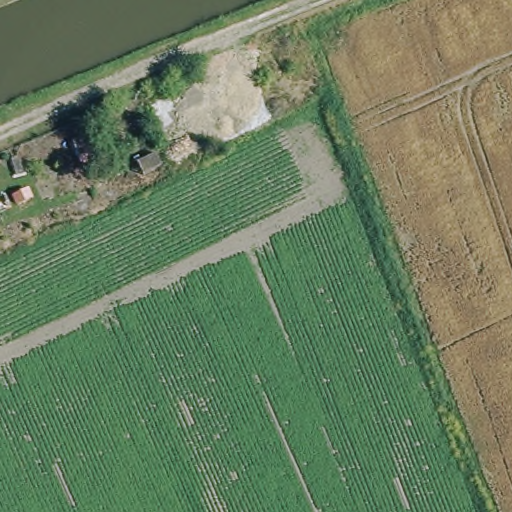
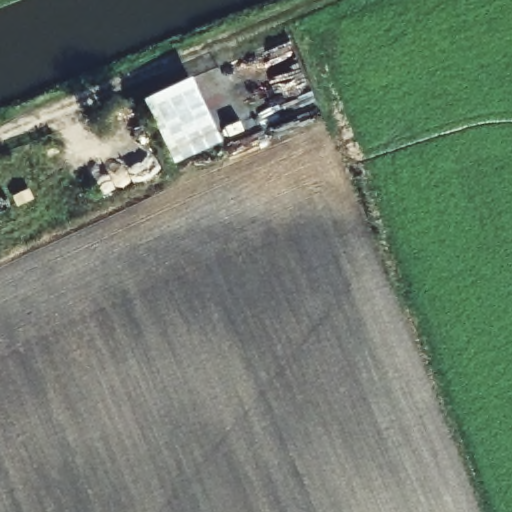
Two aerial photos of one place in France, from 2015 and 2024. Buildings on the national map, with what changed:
new [(221,141),(173,164),(143,100),(191,78),(221,141)]
demolished [(37,180),(63,169),(49,144),(90,132),(94,159),(75,164),(83,187),(46,199),(37,180)]

